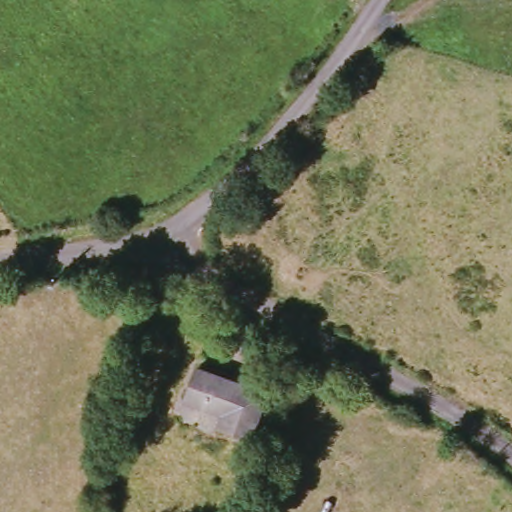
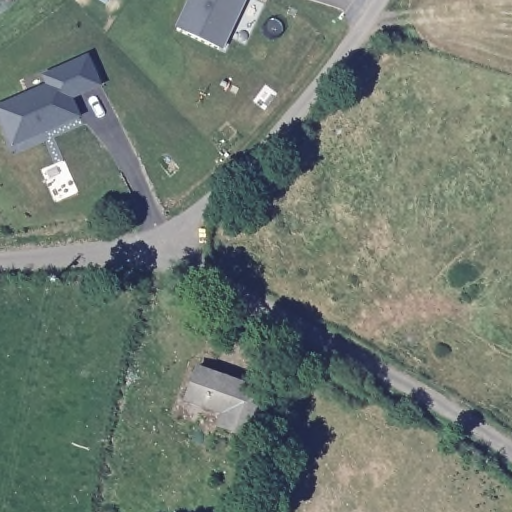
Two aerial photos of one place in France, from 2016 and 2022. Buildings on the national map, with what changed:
new [(223,49),(176,27),(189,0),(246,0),(223,49)]
new [(73,99),(80,118),(11,147),(0,119),(0,105),(46,84),(43,76),(89,55),(101,86),(73,99)]
unchanged [(271,393),(256,436),(228,426),(229,422),(186,407),(201,369),(271,393)]

